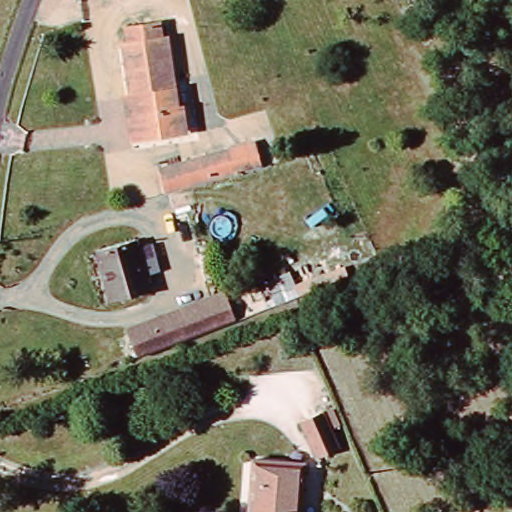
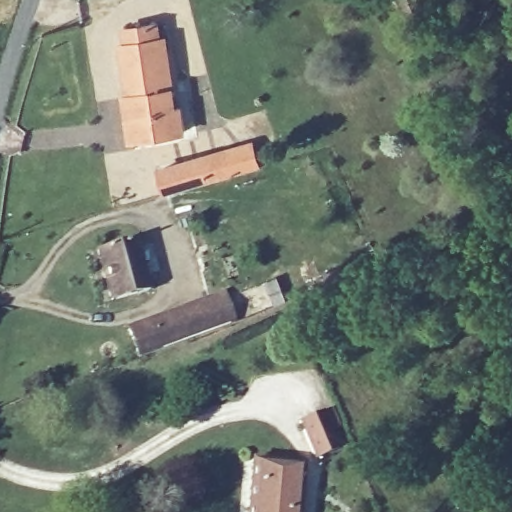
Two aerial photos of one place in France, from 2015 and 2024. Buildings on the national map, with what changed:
unchanged [(127,95),(121,44),(128,44),(127,26),(157,24),(163,37),(172,37),(176,70),(179,101),(187,100),(189,130),(142,133),(132,135),(127,95)]
unchanged [(204,154),(225,147),(255,139),(262,166),(232,173),(213,178),(168,192),(161,167),(204,154)]
unchanged [(104,252),(136,244),(147,295),(116,303),(104,252)]
unchanged [(146,356),(137,330),(227,297),(236,323),(146,356)]
unchanged [(342,448),(322,455),(308,420),(329,413),(342,448)]
unchanged [(307,469),(302,512),(252,512),(257,464),(307,469)]

